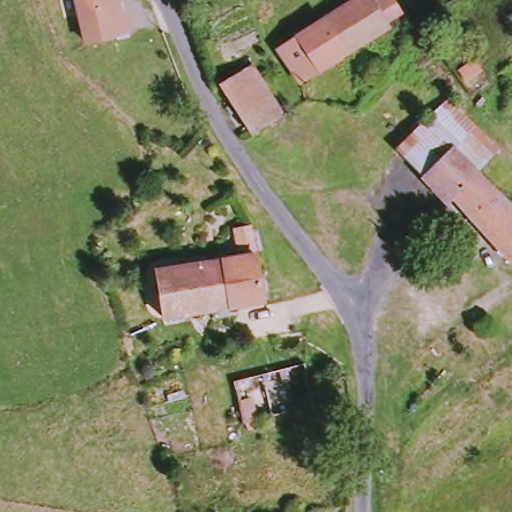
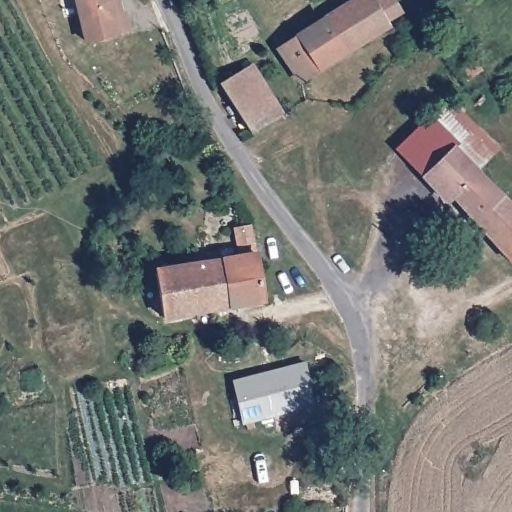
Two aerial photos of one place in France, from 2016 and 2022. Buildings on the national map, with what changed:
unchanged [(84,46),(75,0),(117,0),(121,18),(125,18),(128,37),(84,46)]
unchanged [(279,49),(357,0),(395,0),(402,8),(386,20),(392,29),(355,50),(302,85),(279,49)]
unchanged [(492,0),(512,0),(512,1),(499,9),(492,0)]
unchanged [(256,65),(286,113),(253,132),(227,82),(256,65)]
unchanged [(451,100),(504,148),(481,172),(426,125),(451,100)]
unchanged [(456,200),(450,205),(427,180),(431,175),(421,164),(416,170),(402,149),(426,125),(481,172),(512,200),(512,256),(456,200)]
unchanged [(259,263),(264,308),(163,320),(154,276),(236,265),(259,263)]

